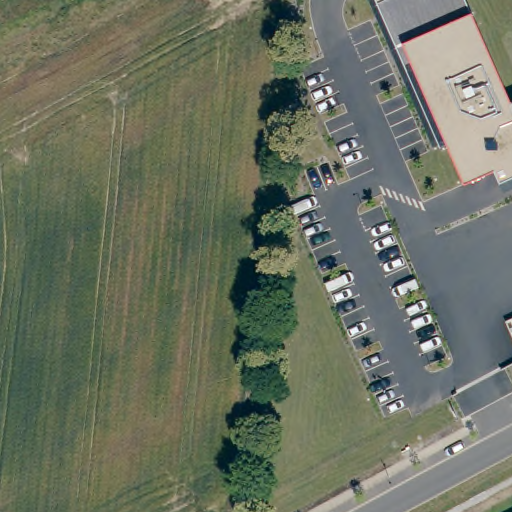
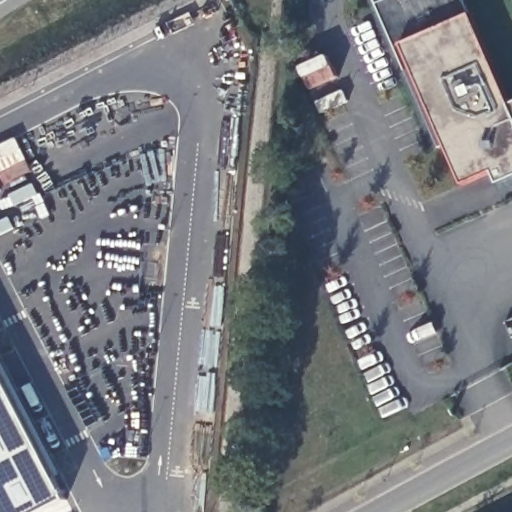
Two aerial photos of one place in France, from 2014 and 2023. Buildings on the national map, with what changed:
unchanged [(489,174),(462,185),(447,151),(440,152),(373,0),(464,0),(470,15),(509,104),(512,102),(512,178),(495,186),(489,174)]
new [(44,512),(0,512),(0,369),(67,500),(44,512)]

